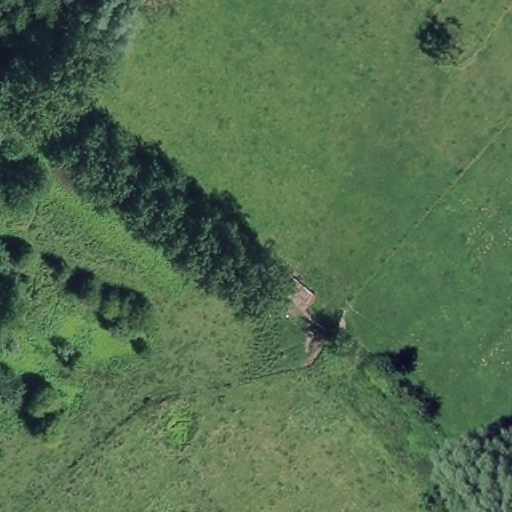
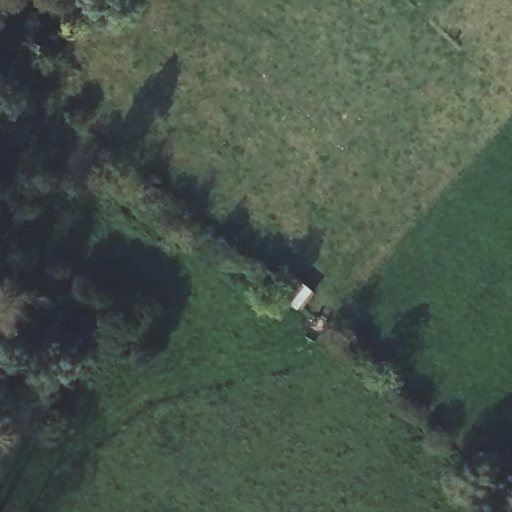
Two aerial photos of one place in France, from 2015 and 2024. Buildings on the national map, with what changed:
unchanged [(273,281),(290,263),(316,288),(301,305),(273,281)]

